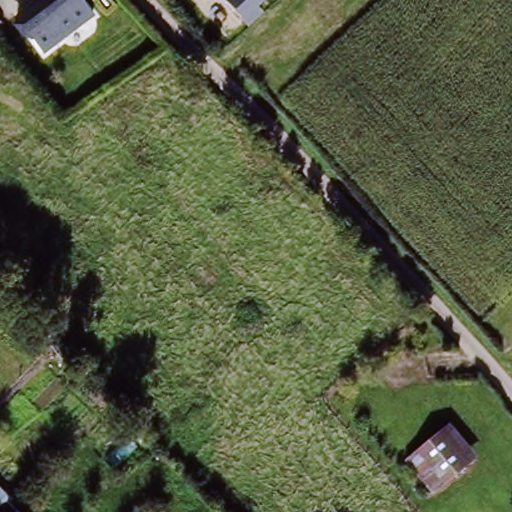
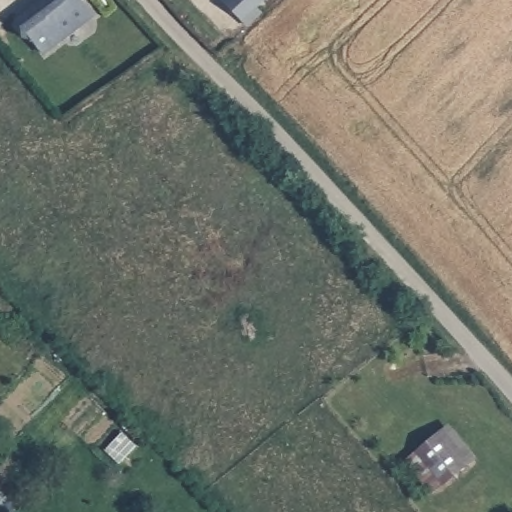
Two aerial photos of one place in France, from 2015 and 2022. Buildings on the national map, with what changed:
unchanged [(21,26),(47,0),(77,0),(35,41),(21,26)]
unchanged [(261,0),(247,14),(233,0),(261,0)]
unchanged [(417,457),(426,448),(446,428),(476,460),(454,479),(445,487),(417,457)]

